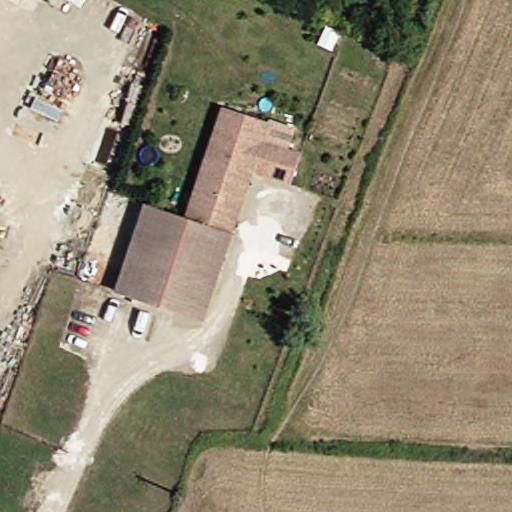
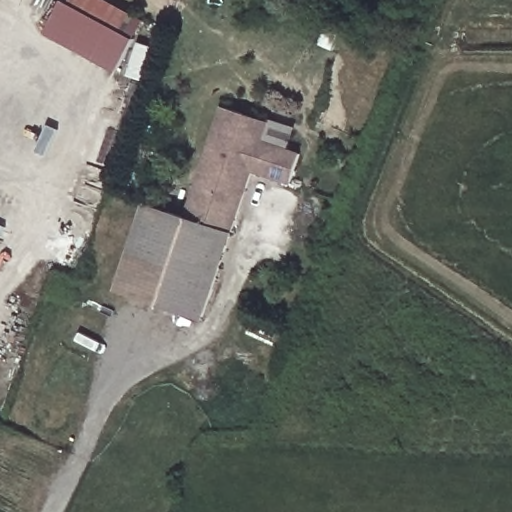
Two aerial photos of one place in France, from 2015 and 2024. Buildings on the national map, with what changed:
new [(146,21),(118,73),(45,36),(63,1),(70,5),(72,0),(107,0),(146,21)]
unchanged [(276,127),(268,146),(306,161),(295,189),(257,174),(200,322),(116,289),(149,203),(189,219),(231,109),(276,127)]

